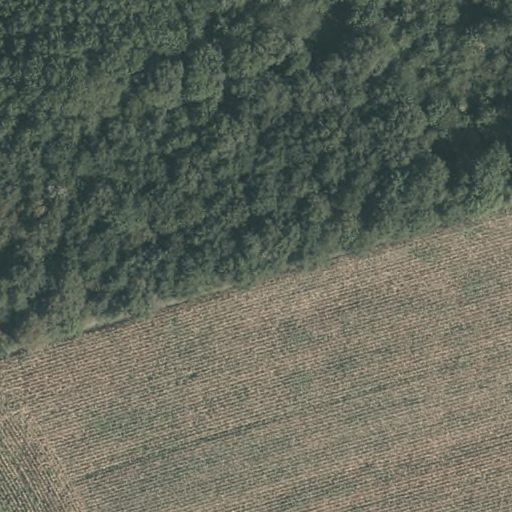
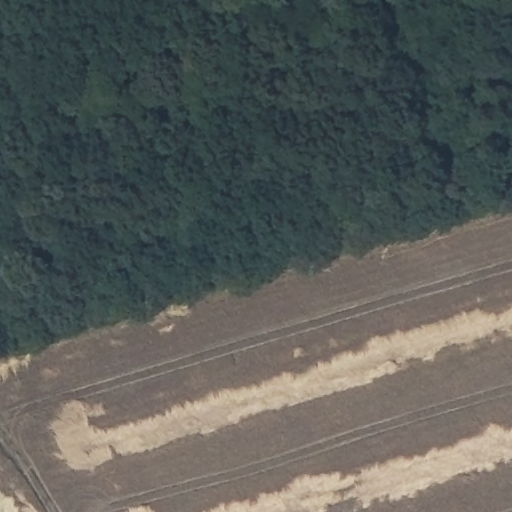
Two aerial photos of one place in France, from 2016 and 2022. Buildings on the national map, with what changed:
[]

